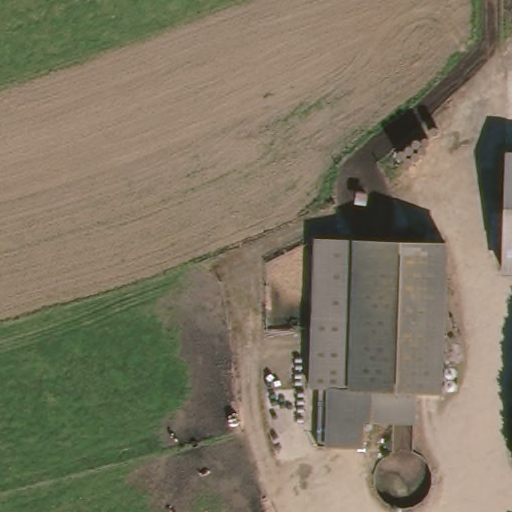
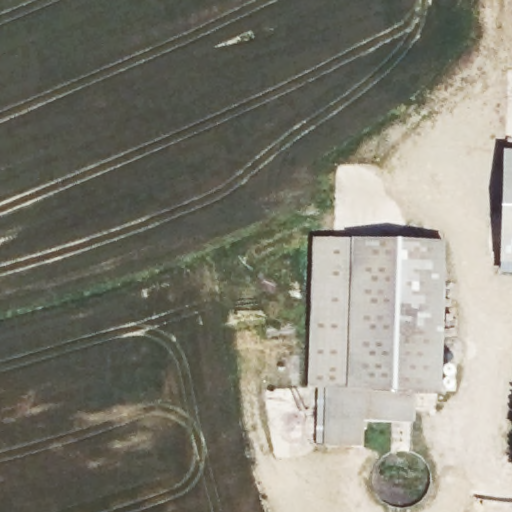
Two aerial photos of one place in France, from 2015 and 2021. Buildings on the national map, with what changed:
unchanged [(512,267),(495,266),(501,154),(512,154),(512,267)]
unchanged [(439,394),(413,393),(412,423),(363,422),(362,446),(318,445),(320,390),(310,389),(315,240),(444,242),(439,394)]

